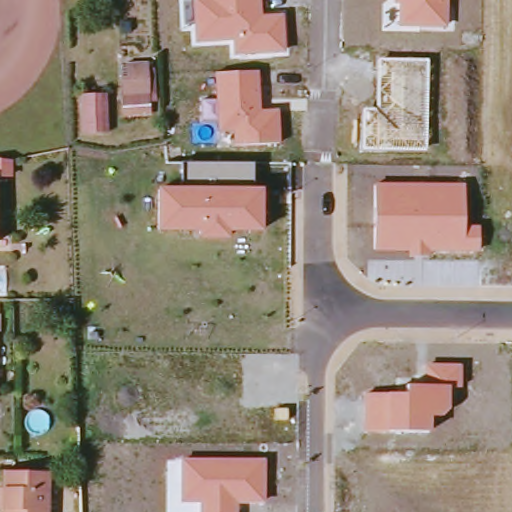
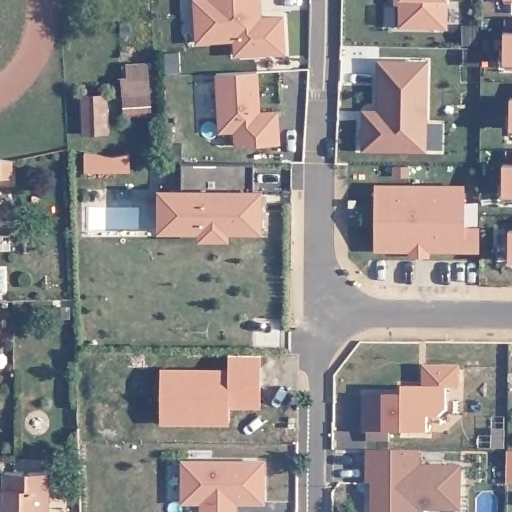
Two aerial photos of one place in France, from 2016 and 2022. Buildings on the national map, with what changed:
unchanged [(283,14),(286,52),(235,54),(233,40),(195,42),(193,24),(185,24),(184,2),(193,2),(193,0),(261,0),(262,15),(283,14)]
unchanged [(398,28),(398,4),(394,3),(394,0),(448,0),(447,29),(398,28)]
new [(503,30),(512,30),(512,62),(503,61),(503,30)]
unchanged [(426,61),(426,150),(362,148),(362,110),(377,110),(378,59),(426,61)]
unchanged [(156,62),(160,102),(155,102),(158,118),(127,117),(122,74),(128,74),(128,64),(156,62)]
unchanged [(259,72),(260,111),(277,111),(278,142),(231,143),(230,131),(216,130),(216,121),(202,121),(201,100),(215,100),(214,74),(259,72)]
unchanged [(111,96),(112,135),(87,137),(84,95),(111,96)]
new [(511,97),(512,97),(512,128),(511,128),(511,97)]
unchanged [(6,160),(7,160),(10,160),(10,179),(7,179),(0,179),(0,161),(6,160)]
new [(503,162),(512,162),(512,193),(503,193),(503,162)]
unchanged [(252,163),(252,187),(261,187),(262,232),(229,232),(230,240),(197,239),(197,230),(160,230),(159,185),(182,184),(182,163),(252,163)]
unchanged [(465,184),(465,226),(478,226),(478,252),(430,252),(430,256),(408,255),(408,251),(373,252),(375,184),(465,184)]
new [(510,228),(512,229),(512,260),(510,260),(510,228)]
unchanged [(405,394),(405,384),(423,384),(423,365),(461,365),(460,389),(449,389),(448,412),(443,417),(430,418),(430,433),(363,431),(365,394),(405,394)]
new [(229,404),(229,421),(160,420),(160,369),(228,370),(229,394),(260,394),(260,404),(229,404)]
new [(420,509),(420,512),(373,512),(372,481),(368,481),(367,449),(422,449),(422,464),(462,464),(462,509),(420,509)]
new [(508,451),(512,451),(512,483),(508,483),(508,451)]
unchanged [(265,459),(265,504),(237,505),(237,512),(200,512),(200,502),(180,500),(180,457),(265,459)]
unchanged [(5,490),(5,474),(45,473),(47,512),(5,512),(0,512),(0,490),(5,490)]

